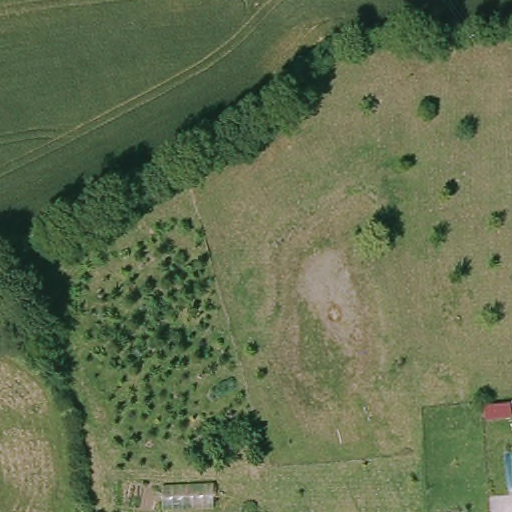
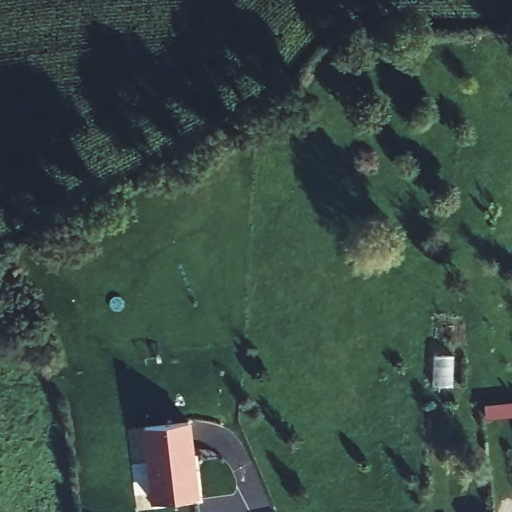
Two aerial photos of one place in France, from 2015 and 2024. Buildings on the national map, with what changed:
new [(150,505),(142,427),(190,421),(200,500),(175,502),(150,505)]

